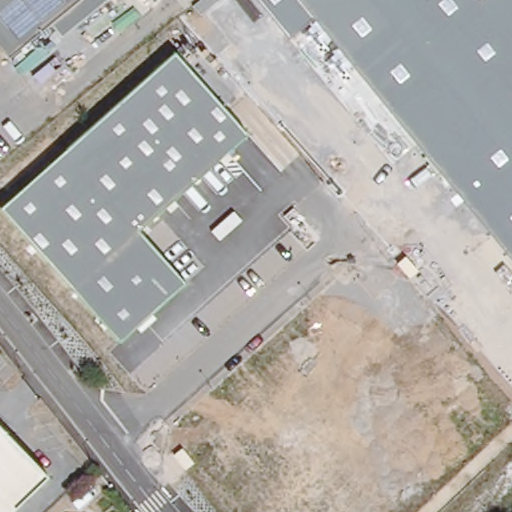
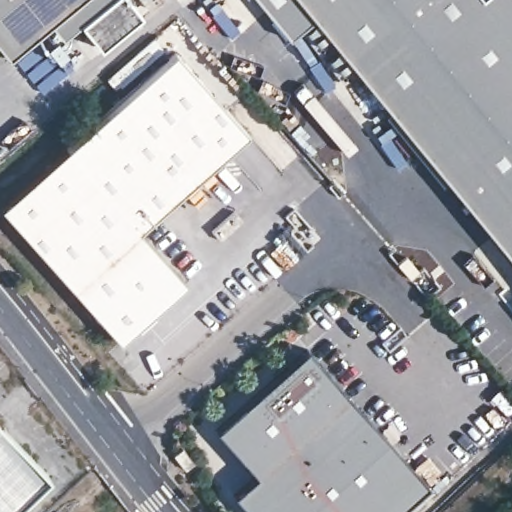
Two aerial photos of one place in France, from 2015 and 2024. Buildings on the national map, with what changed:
unchanged [(52,19),(9,54),(0,43),(0,0),(107,0),(66,34),(52,19)]
new [(125,0),(138,15),(100,46),(79,23),(107,0),(125,0)]
unchanged [(314,18),(290,38),(259,0),(512,0),(512,258),(314,18)]
unchanged [(176,54),(248,134),(140,232),(184,283),(119,341),(2,208),(176,54)]
new [(421,488),(393,512),(248,512),(233,496),(253,474),(218,434),(304,352),(421,488)]
unchanged [(14,512),(0,512),(0,426),(49,478),(14,512)]

